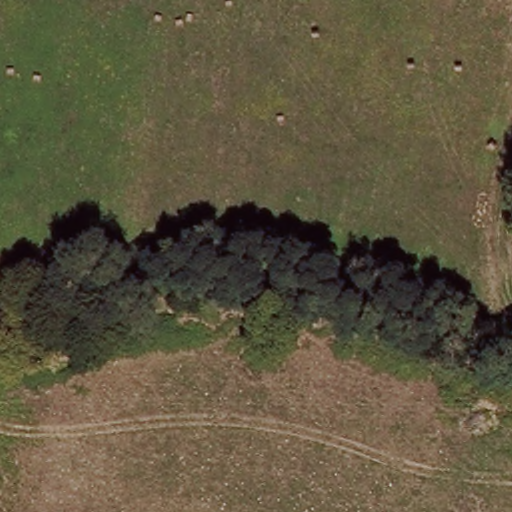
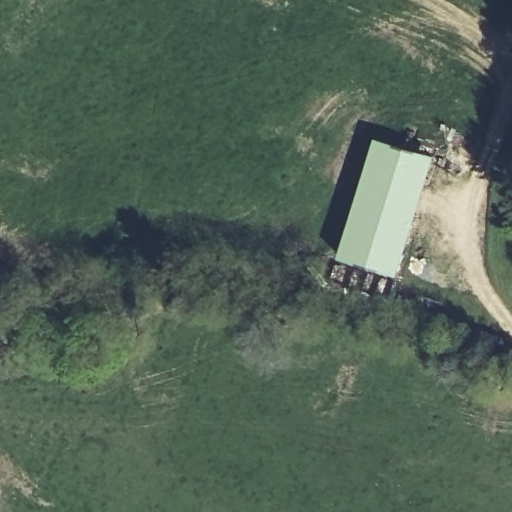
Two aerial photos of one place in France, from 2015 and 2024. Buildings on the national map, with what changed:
new [(397,274),(336,256),(373,136),(435,154),(397,274)]

